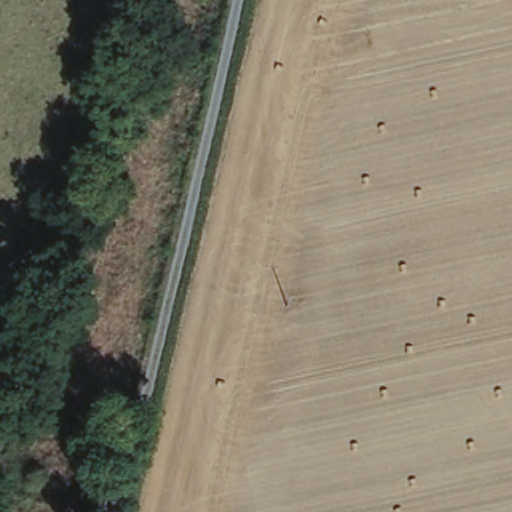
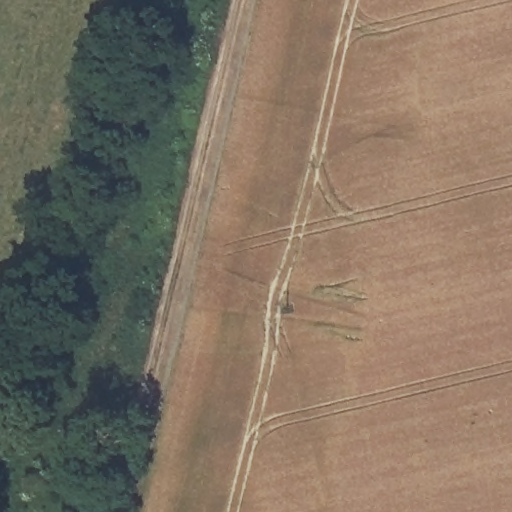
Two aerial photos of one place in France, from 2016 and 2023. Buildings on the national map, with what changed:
[]

